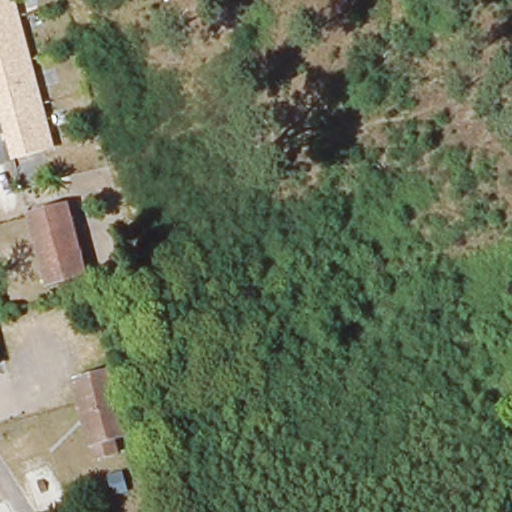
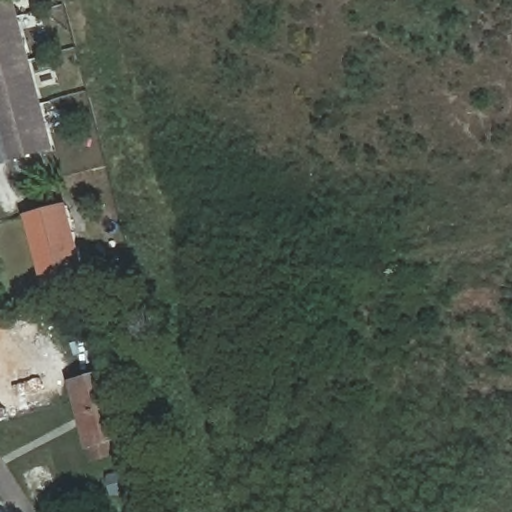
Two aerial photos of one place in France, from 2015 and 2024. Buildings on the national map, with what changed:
unchanged [(0,22),(0,0),(12,0),(17,18),(29,61),(0,68),(0,22)]
unchanged [(0,108),(0,68),(29,61),(40,104),(1,114),(0,108)]
unchanged [(40,104),(51,147),(12,158),(1,114),(40,104)]
unchanged [(66,206),(85,275),(49,285),(29,217),(66,206)]
unchanged [(74,383),(110,372),(129,436),(113,440),(117,453),(95,459),(91,446),(90,446),(74,383)]

